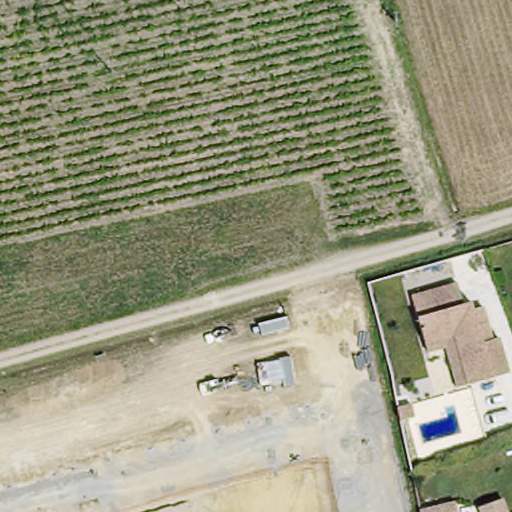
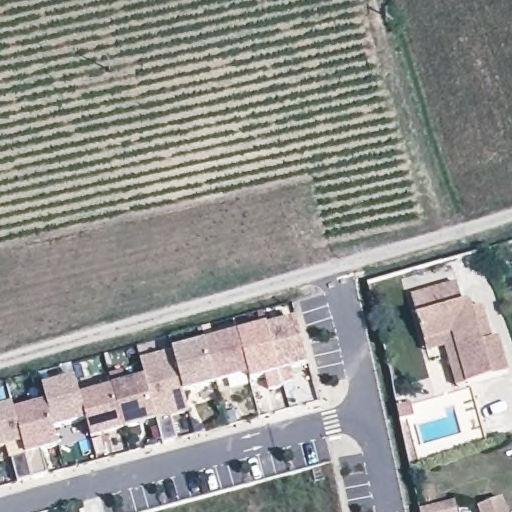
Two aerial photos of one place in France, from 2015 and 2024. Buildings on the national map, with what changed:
unchanged [(448,347),(433,352),(429,340),(415,298),(459,285),(464,304),(473,302),(475,310),(485,307),(496,340),(502,339),(512,373),(473,384),(464,387),(448,347)]
new [(279,373),(268,328),(297,319),(309,366),(291,371),(296,382),(284,387),(279,373)]
new [(279,373),(284,387),(269,390),(266,377),(250,380),(246,375),(236,336),(238,333),(268,325),(268,328),(279,373)]
new [(181,392),(188,417),(161,423),(123,433),(92,443),(85,419),(56,428),(59,444),(38,449),(46,477),(18,484),(8,449),(0,452),(0,410),(9,408),(11,416),(46,404),(42,391),(75,381),(81,399),(143,382),(139,364),(174,352),(236,336),(246,375),(181,392)]
new [(449,503),(451,512),(414,512),(414,511),(429,508),(449,503)]
unchanged [(502,506),(504,512),(484,512),(502,506)]

